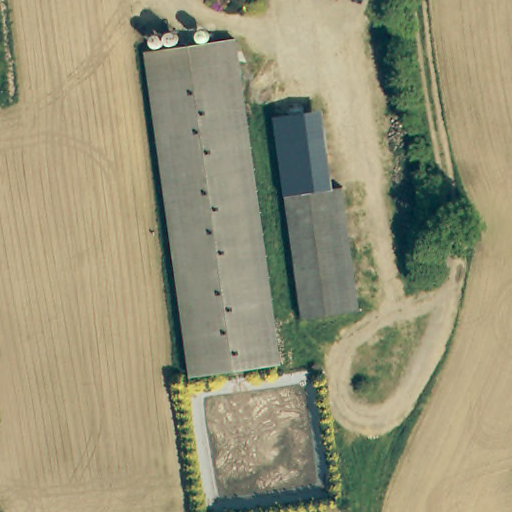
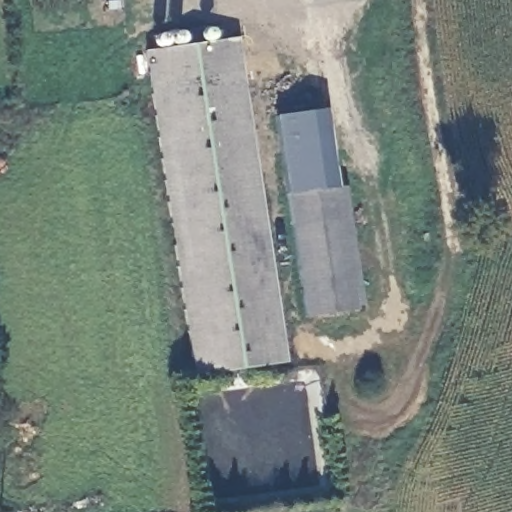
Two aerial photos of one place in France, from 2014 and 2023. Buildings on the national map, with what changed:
unchanged [(145,77),(141,48),(232,35),(235,59),(231,59),(145,77)]
unchanged [(272,358),(184,370),(145,77),(231,59),(272,358)]
unchanged [(235,59),(276,357),(272,358),(231,59),(235,59)]
unchanged [(270,113),(303,108),(314,186),(281,190),(270,113)]
unchanged [(314,186),(339,183),(356,304),(296,312),(279,190),(281,190),(314,186)]

